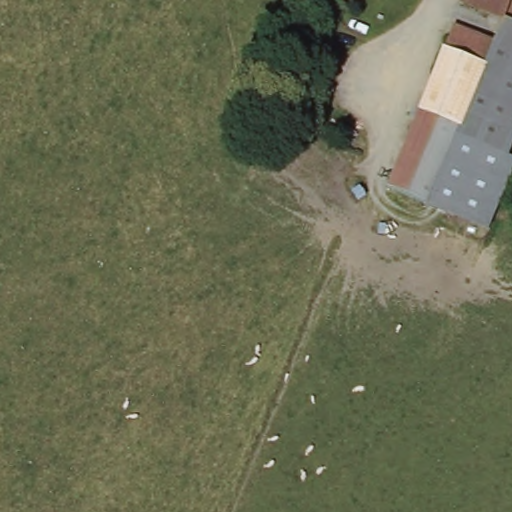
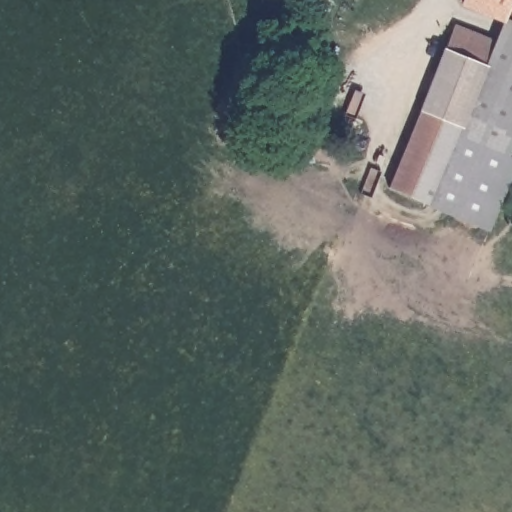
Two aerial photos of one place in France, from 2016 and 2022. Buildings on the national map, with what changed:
unchanged [(341,2),(338,11),(338,18),(334,28),(325,26),(334,0),(341,0),(341,2)]
unchanged [(512,23),(500,18),(460,2),(461,0),(512,0),(512,23)]
unchanged [(500,18),(512,23),(512,145),(507,158),(512,161),(512,174),(503,202),(490,230),(428,206),(450,150),(491,39),(500,18)]
unchanged [(453,26),(491,39),(450,150),(409,134),(453,26)]
unchanged [(409,134),(450,150),(428,206),(386,189),(409,134)]

